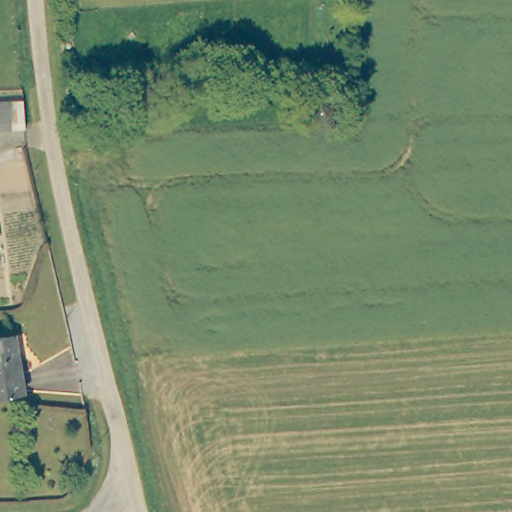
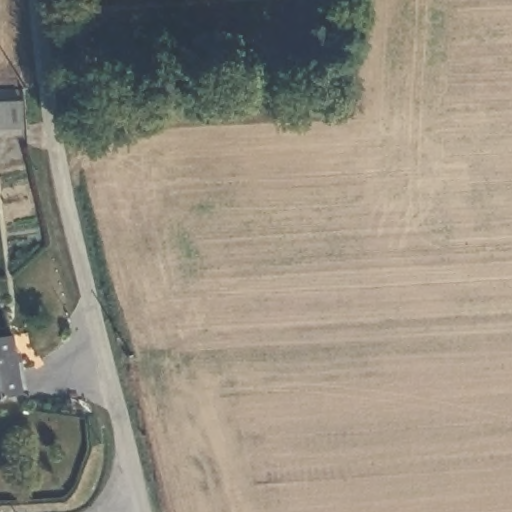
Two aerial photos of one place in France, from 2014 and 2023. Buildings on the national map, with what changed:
unchanged [(15,104),(15,130),(0,130),(0,105),(15,104)]
unchanged [(0,396),(0,335),(17,331),(26,391),(0,396)]

